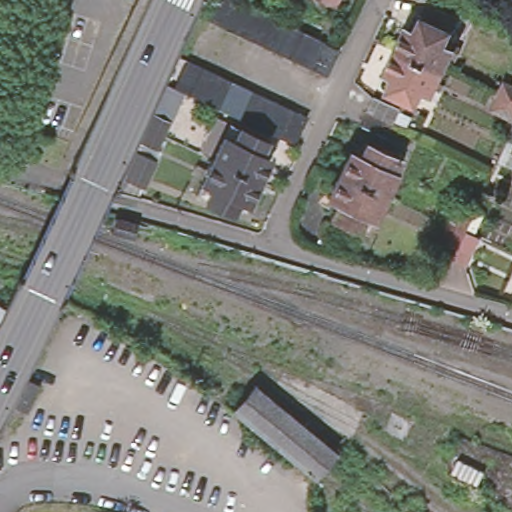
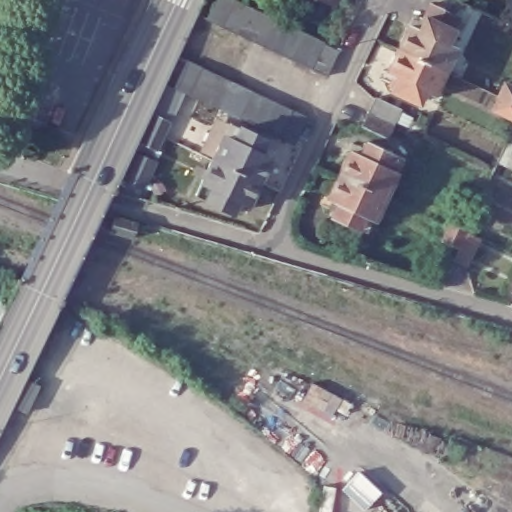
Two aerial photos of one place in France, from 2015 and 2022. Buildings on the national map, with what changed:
unchanged [(313,65),(297,57),(282,50),(269,44),(254,37),(239,30),(224,23),(207,15),(197,11),(202,0),(242,0),(252,4),(267,11),(281,18),(295,24),(310,31),(326,38),(338,44),(341,43),(327,71),(313,65)]
unchanged [(327,10),(305,0),(333,0),(327,10)]
unchanged [(450,45),(439,68),(393,46),(405,24),(414,28),(421,14),(427,0),(428,0),(454,12),(447,27),(442,41),(450,45)]
unchanged [(429,90),(420,85),(412,99),(386,86),(392,72),(382,69),(393,46),(439,68),(429,90)]
unchanged [(265,125),(249,118),(235,111),(221,104),(206,97),(191,90),(174,82),(165,79),(177,53),(187,57),(204,64),(219,71),(233,78),(247,85),(262,92),(277,99),(292,106),(307,113),(295,139),(280,132),(265,125)]
unchanged [(506,119),(494,113),(500,100),(507,85),(512,88),(512,122),(506,119)]
unchanged [(395,125),(389,139),(362,127),(369,113),(376,99),(401,111),(395,125)]
unchanged [(162,137),(156,150),(140,143),(146,129),(152,115),(169,123),(162,137)]
unchanged [(266,136),(260,149),(268,154),(257,178),(248,199),(238,195),(231,209),(196,191),(212,156),(230,119),(266,136)]
unchanged [(354,147),(361,134),(397,151),(381,187),(364,223),(327,206),(332,193),(323,187),(334,165),(345,143),(354,147)]
unchanged [(152,162),(141,188),(124,181),(136,154),(152,162)]
unchanged [(134,220),(129,234),(107,227),(111,213),(134,220)]
unchanged [(454,261),(460,250),(443,242),(450,228),(457,215),(472,222),(467,235),(482,241),(469,268),(454,261)]
unchanged [(224,407),(252,377),(338,446),(312,478),(224,407)]

